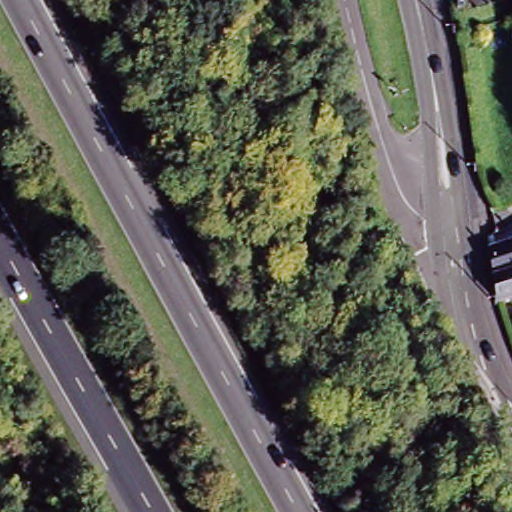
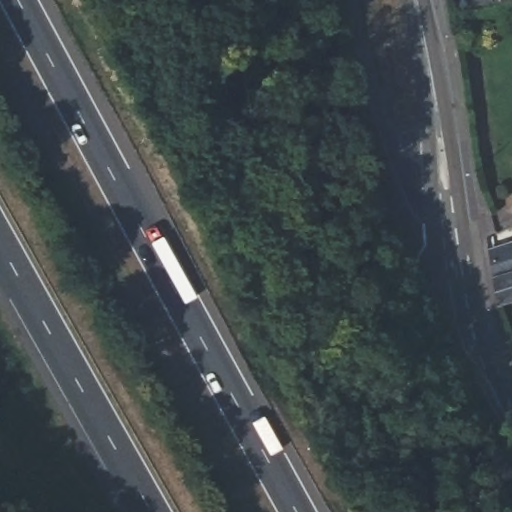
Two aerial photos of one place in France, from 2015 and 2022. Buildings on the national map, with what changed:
unchanged [(490,305),(483,280),(476,254),(512,242),(512,298),(490,305)]

